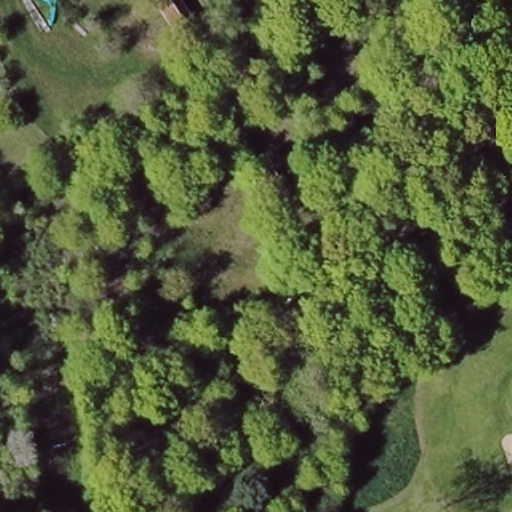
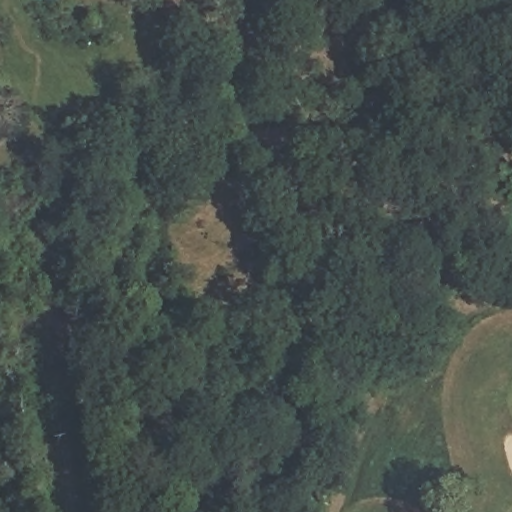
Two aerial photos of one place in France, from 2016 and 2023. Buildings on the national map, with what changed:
unchanged [(336,18),(343,44),(319,49),(312,24),(336,18)]

